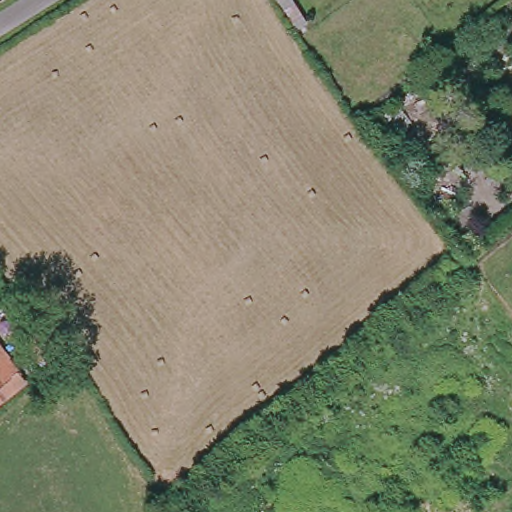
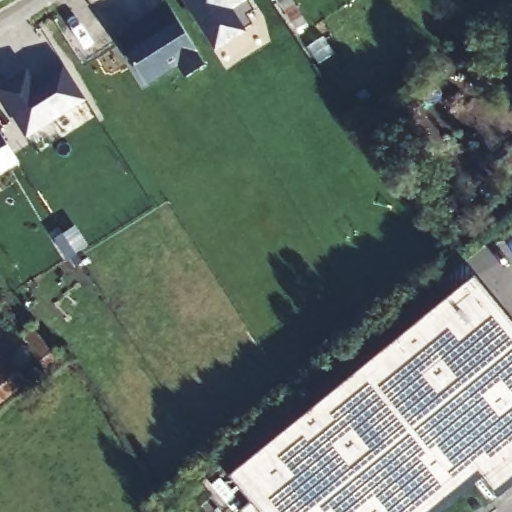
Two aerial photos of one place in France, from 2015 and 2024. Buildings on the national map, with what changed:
new [(246,12),(251,21),(215,45),(187,0),(248,0),(253,8),(246,12)]
new [(185,75),(177,62),(145,82),(121,46),(116,37),(135,26),(133,22),(151,11),(166,2),(205,62),(185,75)]
new [(83,97),(25,135),(0,96),(0,85),(25,70),(35,86),(45,79),(43,76),(62,64),(83,97)]
new [(15,158),(0,167),(0,135),(15,158)]
demolished [(512,255),(512,274),(502,262),(512,255)]
new [(512,483),(498,493),(482,472),(433,512),(261,512),(226,467),(475,271),(512,317),(512,483)]
unchanged [(12,356),(6,361),(20,377),(8,387),(5,383),(0,387),(0,341),(12,356)]

